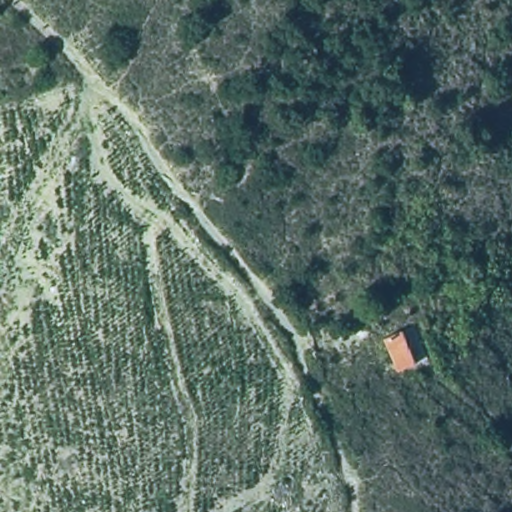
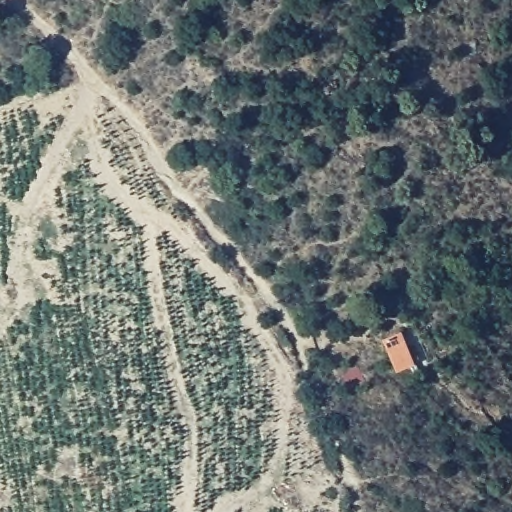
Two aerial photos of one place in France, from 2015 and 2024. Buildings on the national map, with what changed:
unchanged [(418,365),(400,372),(386,341),(405,333),(418,365)]

